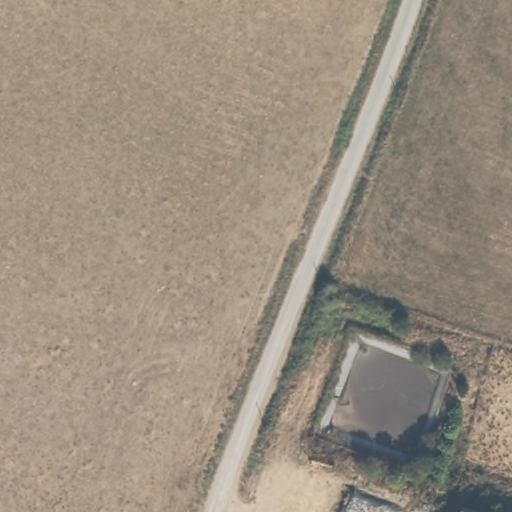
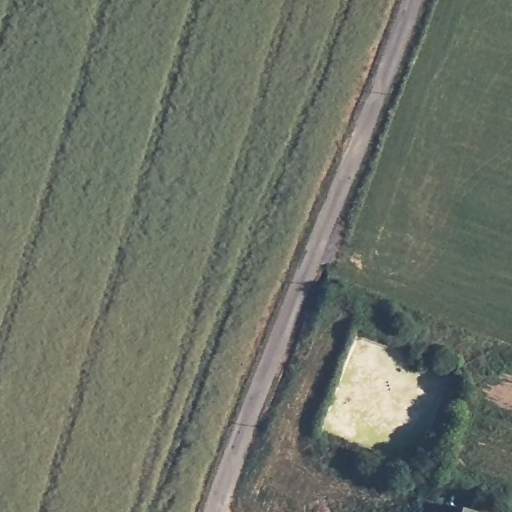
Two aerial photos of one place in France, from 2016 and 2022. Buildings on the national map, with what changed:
unchanged [(461,502),(493,512),(457,512),(461,502)]

